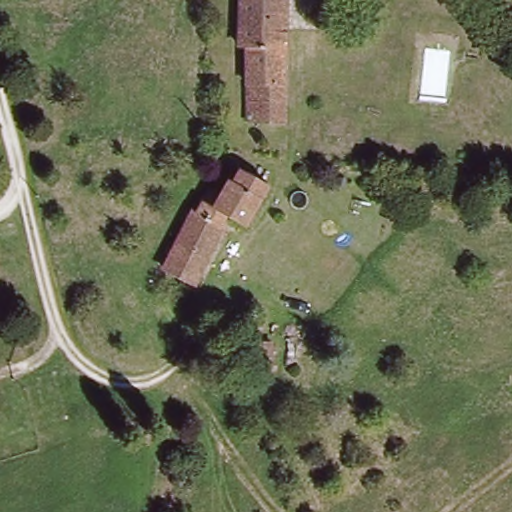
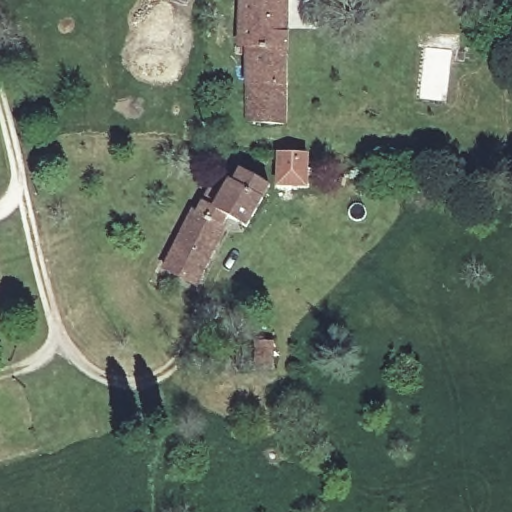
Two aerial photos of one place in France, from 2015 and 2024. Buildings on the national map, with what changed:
unchanged [(264,89),(257,87),(251,49),(242,49),(239,0),(290,0),(300,121),(267,124),(264,89)]
unchanged [(208,172),(220,175),(225,160),(232,163),(238,150),(268,157),(256,198),(232,196),(229,210),(199,199),(208,172)]
new [(276,151),(310,151),(310,187),(275,187),(276,151)]
unchanged [(199,199),(229,210),(239,212),(209,293),(177,282),(162,276),(194,198),(199,199)]

